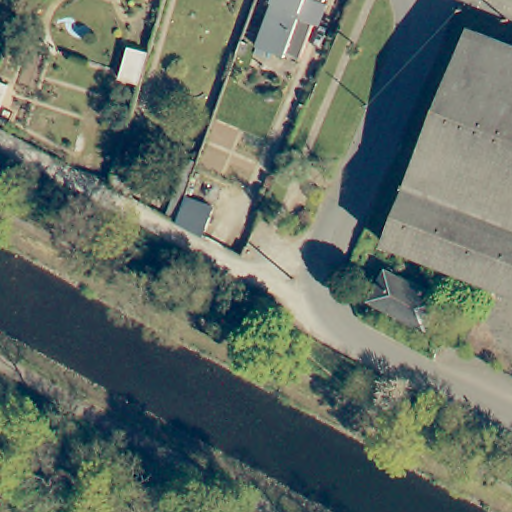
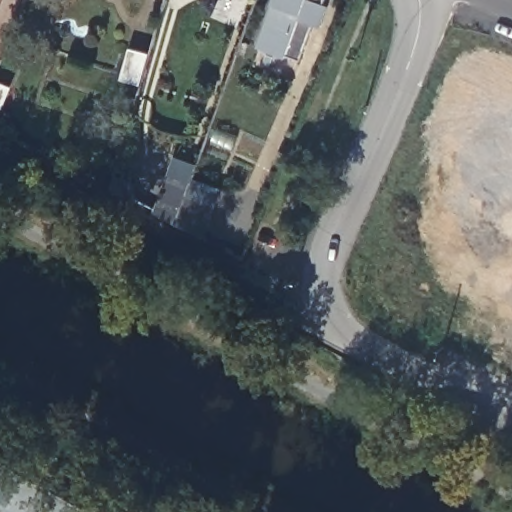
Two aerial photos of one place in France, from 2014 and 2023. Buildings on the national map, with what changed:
unchanged [(286,55),(258,45),(275,0),(326,0),(325,1),(329,3),(322,21),(315,19),(302,57),(287,52),(286,55)]
demolished [(471,29),(512,44),(512,289),(386,239),(471,29)]
unchanged [(151,50),(142,82),(123,76),(125,70),(133,44),(151,50)]
new [(8,86),(0,105),(0,83),(8,86)]
new [(176,152),(199,160),(196,167),(177,219),(157,208),(174,159),(176,152)]
unchanged [(218,202),(203,233),(178,219),(190,188),(218,202)]
demolished [(430,328),(374,298),(392,268),(447,298),(430,328)]

